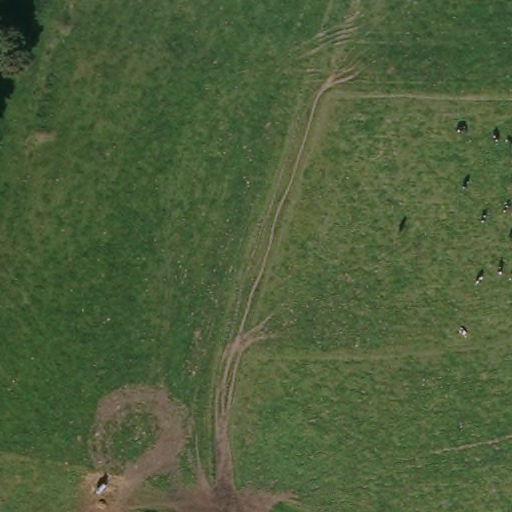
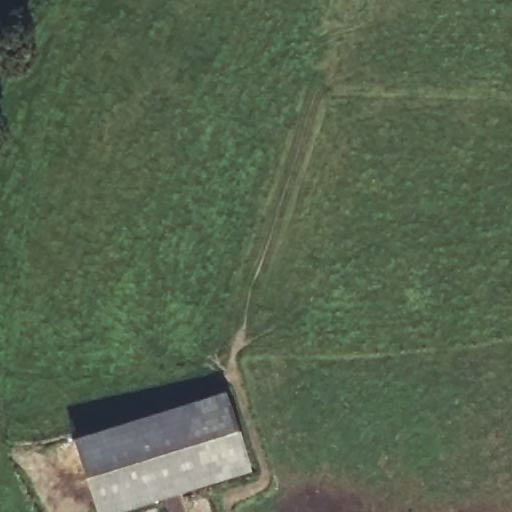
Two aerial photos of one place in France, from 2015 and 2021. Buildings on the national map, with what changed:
new [(75,441),(225,393),(251,472),(121,512),(97,512),(75,441)]

